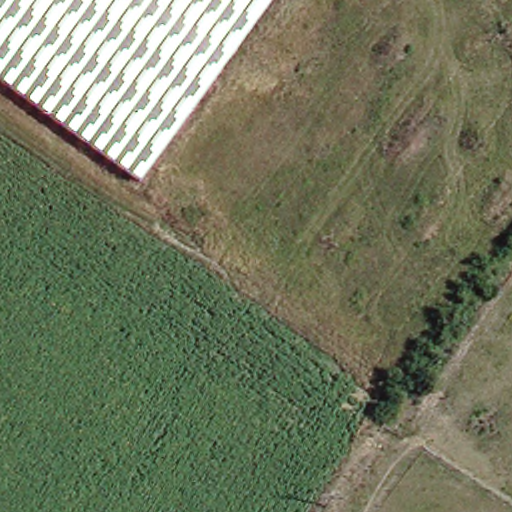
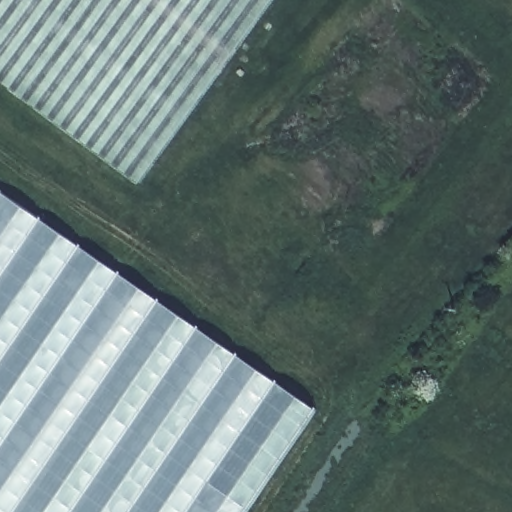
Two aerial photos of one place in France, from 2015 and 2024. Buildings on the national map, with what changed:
unchanged [(103,166),(0,86),(0,0),(227,0),(103,166)]
new [(227,0),(275,0),(136,190),(103,166),(227,0)]
new [(248,512),(0,512),(0,191),(318,410),(248,512)]

